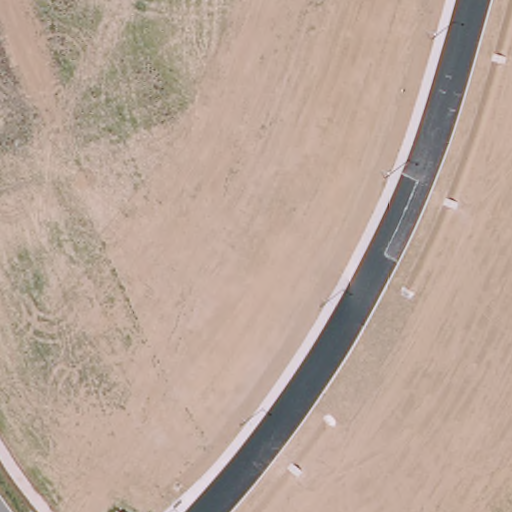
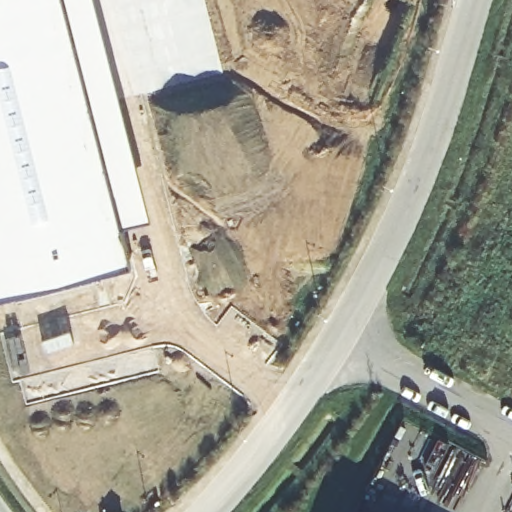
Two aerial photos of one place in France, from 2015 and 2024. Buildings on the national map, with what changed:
new [(123,224),(132,264),(0,296),(0,0),(96,0),(152,218),(123,224)]

